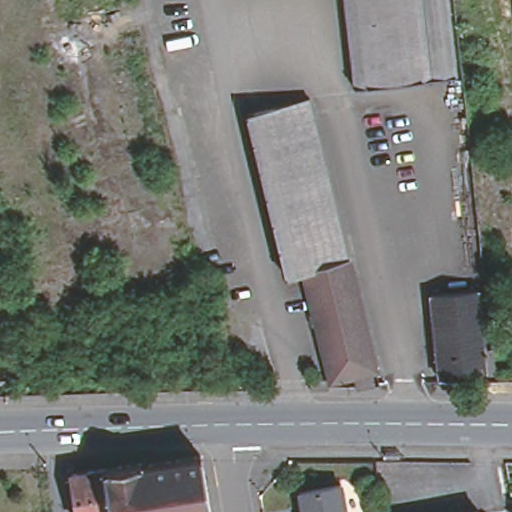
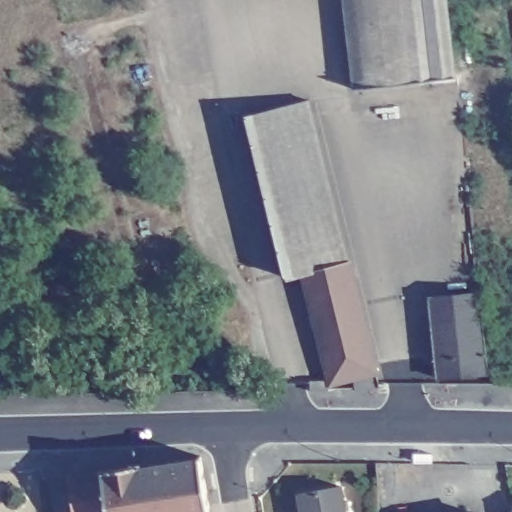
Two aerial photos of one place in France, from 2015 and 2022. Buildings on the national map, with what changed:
unchanged [(352,89),(341,0),(443,0),(452,78),(352,89)]
unchanged [(322,356),(308,296),(303,278),(287,282),(245,121),(248,120),(311,105),(349,267),(353,285),(368,346),(376,380),(367,382),(352,385),(331,389),(322,356)]
unchanged [(477,296),(485,376),(435,382),(427,301),(477,296)]
unchanged [(199,311),(189,313),(188,307),(197,305),(199,311)]
unchanged [(356,396),(356,386),(367,386),(375,387),(375,397),(367,397),(356,396)]
unchanged [(102,470),(141,464),(145,465),(198,457),(208,512),(110,512),(102,470)]
unchanged [(72,475),(102,470),(110,512),(77,512),(72,475)]
unchanged [(300,493),(340,486),(345,512),(303,512),(300,493)]

